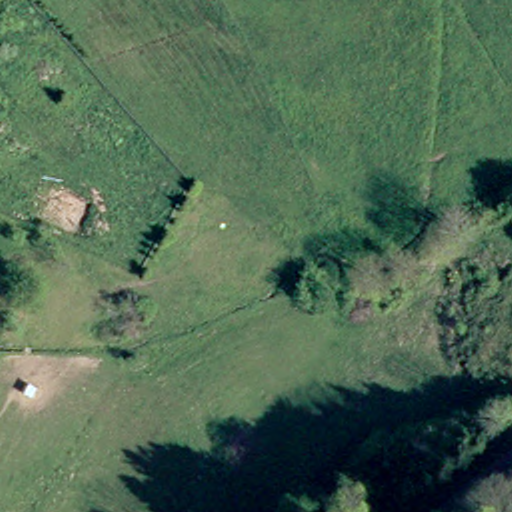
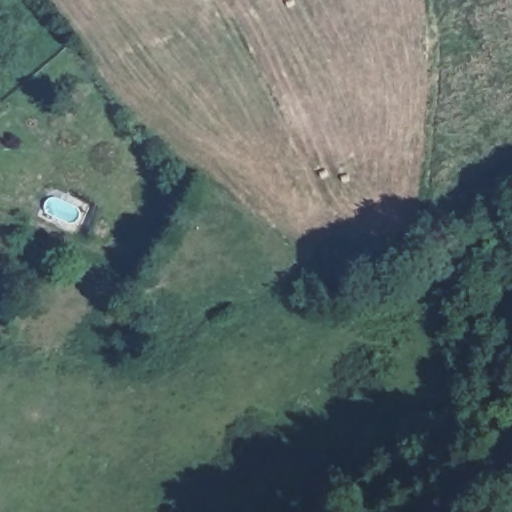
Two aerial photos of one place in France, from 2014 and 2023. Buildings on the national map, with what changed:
[]

